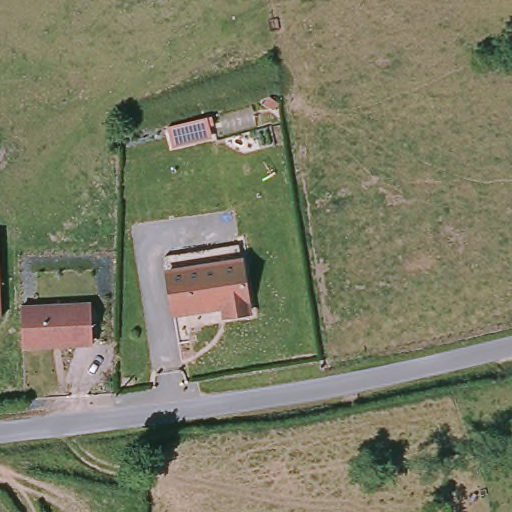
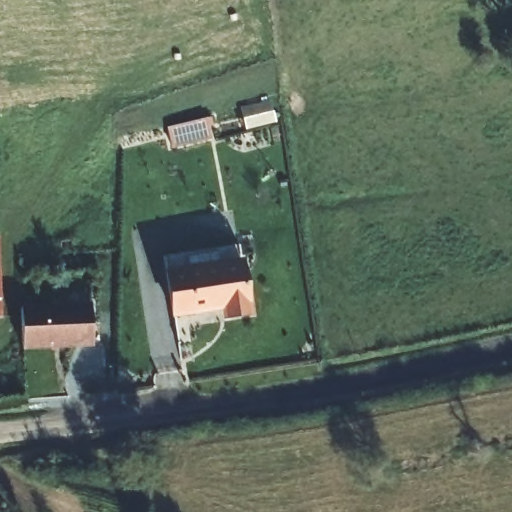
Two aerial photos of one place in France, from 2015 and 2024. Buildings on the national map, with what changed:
unchanged [(165,263),(240,247),(244,265),(176,280),(167,280),(165,263)]
unchanged [(254,318),(231,322),(229,310),(175,321),(167,280),(176,280),(244,265),(254,318)]
unchanged [(89,310),(87,350),(35,349),(37,308),(89,310)]

